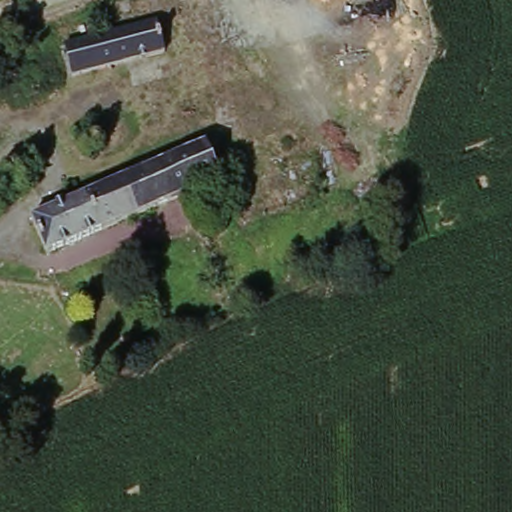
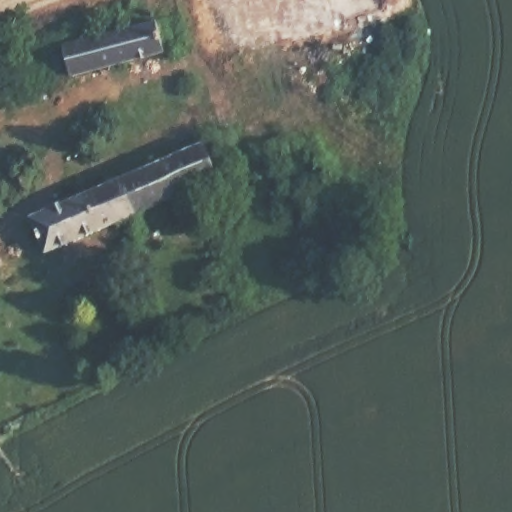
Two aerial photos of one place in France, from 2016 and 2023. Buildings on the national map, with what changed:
unchanged [(158,28),(165,57),(74,79),(66,50),(106,41),(158,28)]
unchanged [(209,150),(222,185),(172,206),(159,171),(209,150)]
unchanged [(172,206),(52,257),(37,221),(159,171),(172,206)]

